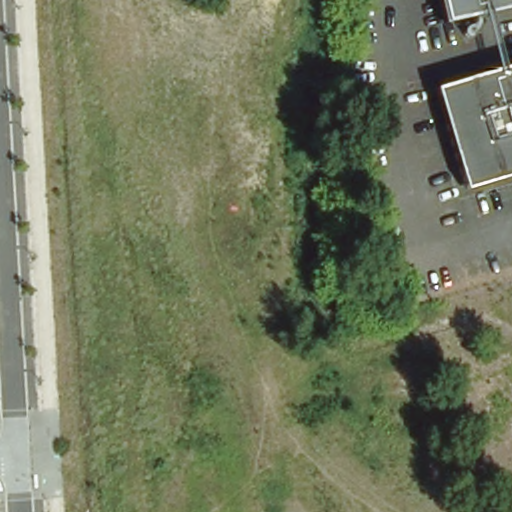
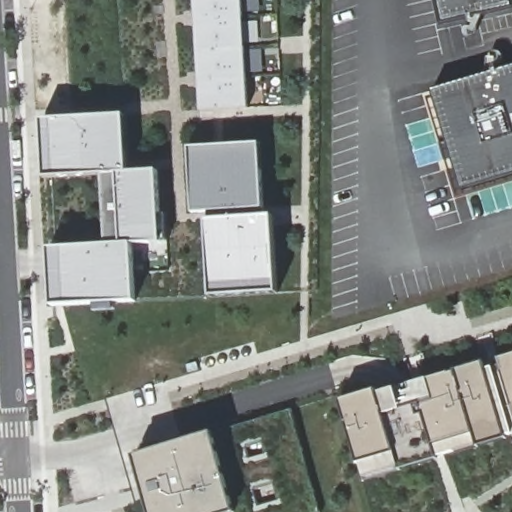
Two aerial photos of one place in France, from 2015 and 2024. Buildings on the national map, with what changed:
new [(249,109),(201,111),(194,0),(243,0),(249,109)]
unchanged [(444,19),(439,0),(512,0),(444,19)]
unchanged [(461,186),(433,87),(512,62),(512,170),(461,186)]
new [(125,115),(128,173),(156,172),(160,242),(130,244),(134,302),(51,307),(48,248),(120,244),(116,174),(44,178),(41,120),(125,115)]
new [(260,143),(265,216),(274,216),(279,294),(210,297),(208,220),(195,221),(190,147),(260,143)]
new [(364,483),(339,396),(512,346),(512,440),(364,483)]
new [(292,410),(321,512),(149,512),(134,456),(292,410)]

